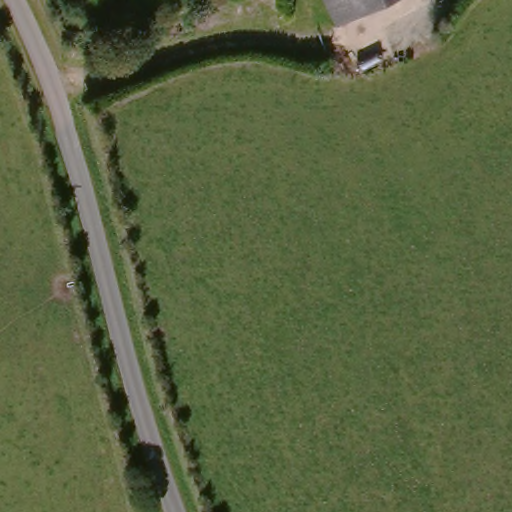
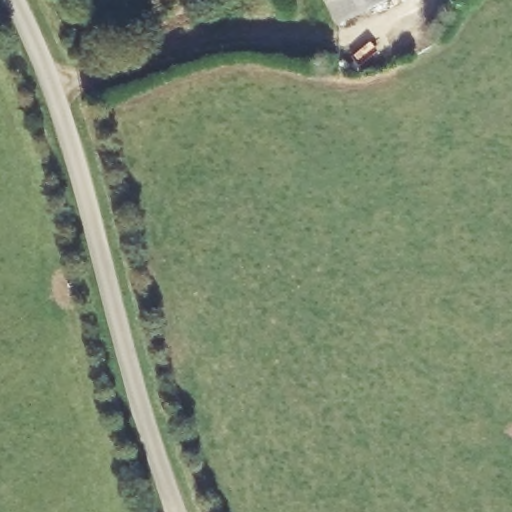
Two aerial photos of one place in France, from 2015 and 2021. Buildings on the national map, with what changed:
unchanged [(337,33),(321,0),(354,0),(364,19),(337,33)]
unchanged [(354,0),(402,0),(364,19),(354,0)]

